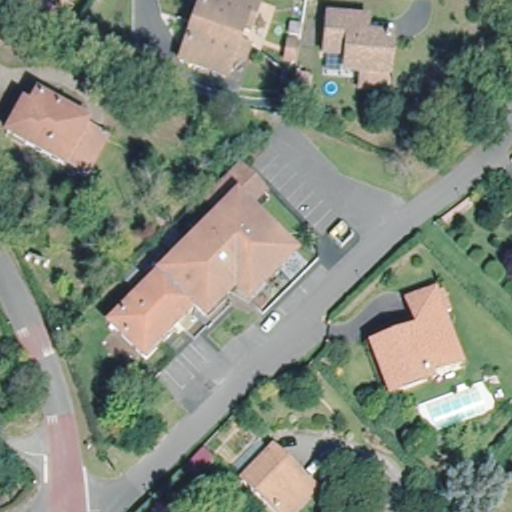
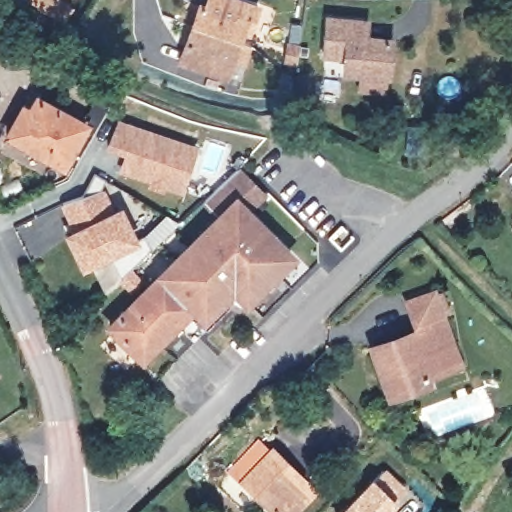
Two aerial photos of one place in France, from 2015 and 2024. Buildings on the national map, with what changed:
unchanged [(228,58),(221,77),(176,62),(196,6),(202,7),(204,0),(230,0),(253,8),(244,33),(237,31),(233,42),(245,46),(240,62),(228,58)]
unchanged [(62,18),(52,11),(57,3),(68,10),(62,18)]
unchanged [(355,89),(356,74),(340,72),(341,57),(320,55),(323,19),(361,22),(360,37),(384,40),(380,76),(379,91),(355,89)]
unchanged [(299,47),(296,62),(295,67),(286,66),(289,46),(299,47)]
unchanged [(66,162),(63,167),(7,136),(18,116),(23,107),(29,111),(36,98),(86,125),(84,129),(66,162)]
new [(199,145),(184,193),(166,188),(164,194),(146,188),(148,181),(118,171),(124,152),(107,146),(118,117),(199,145)]
unchanged [(246,302),(233,289),(204,318),(193,307),(162,338),(160,336),(140,357),(110,327),(223,214),(207,198),(237,169),(264,196),(247,212),(291,257),(246,302)]
new [(114,209),(122,205),(137,239),(144,237),(149,249),(104,291),(93,265),(82,271),(63,232),(73,230),(60,204),(105,189),(114,209)]
unchanged [(380,401),(379,396),(370,345),(417,337),(411,306),(438,301),(445,300),(451,330),(443,331),(445,341),(433,343),(439,377),(418,381),(419,388),(420,393),(380,401)]
unchanged [(192,480),(187,476),(205,458),(200,454),(204,450),(213,458),(192,480)]
unchanged [(311,489),(289,512),(275,512),(242,481),(271,451),(311,489)]
new [(383,470),(402,488),(391,500),(392,502),(382,512),(342,512),(383,470)]

